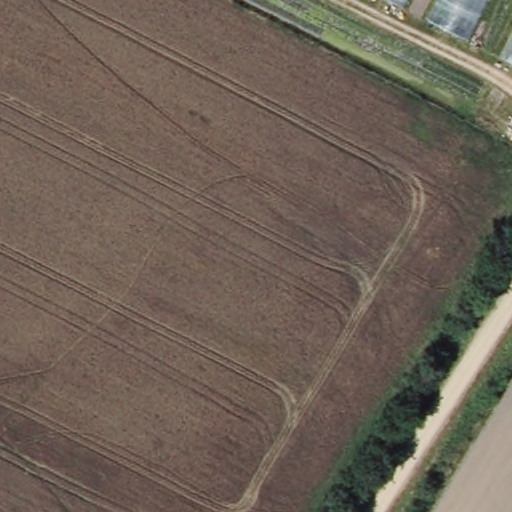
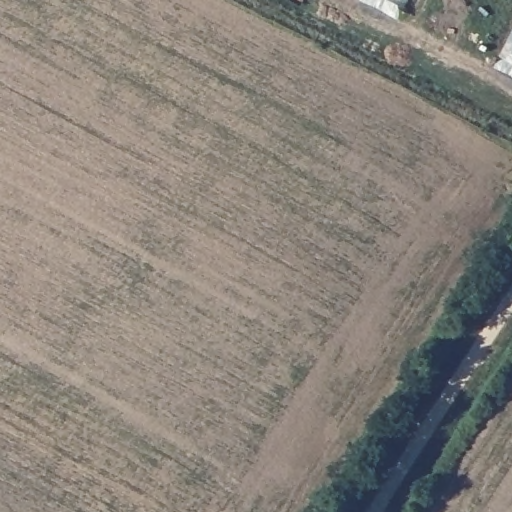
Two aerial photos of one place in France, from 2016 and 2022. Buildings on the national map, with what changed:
unchanged [(362,0),(410,0),(400,20),(362,0)]
demolished [(421,19),(431,0),(489,0),(466,45),(421,19)]
unchanged [(512,49),(512,63),(506,60),(512,49)]

